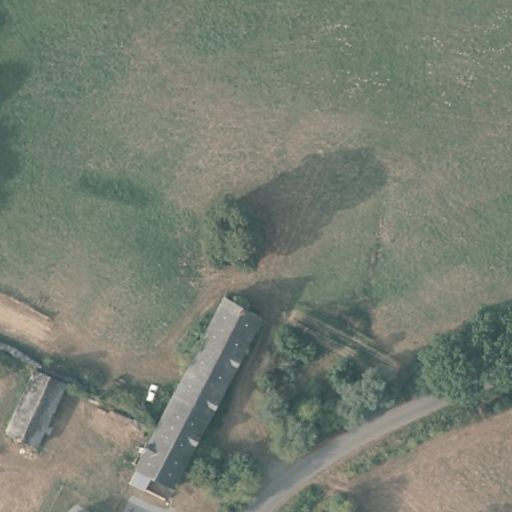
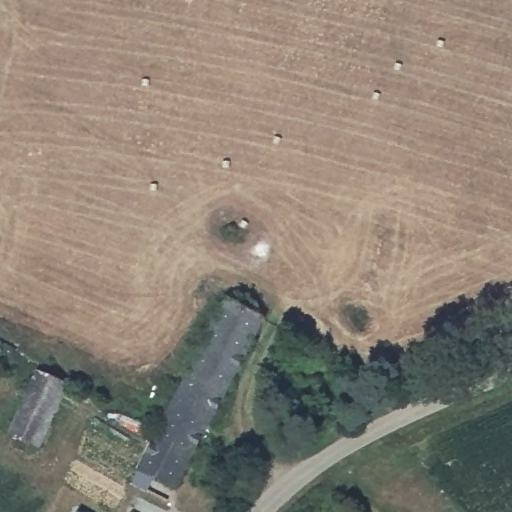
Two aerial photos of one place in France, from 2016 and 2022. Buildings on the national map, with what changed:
unchanged [(154,436),(159,427),(229,297),(264,318),(190,456),(154,436)]
unchanged [(38,371),(68,385),(40,445),(10,432),(38,371)]
unchanged [(174,487),(136,467),(154,436),(190,456),(174,487)]
unchanged [(78,511),(79,512),(78,512),(78,511)]

